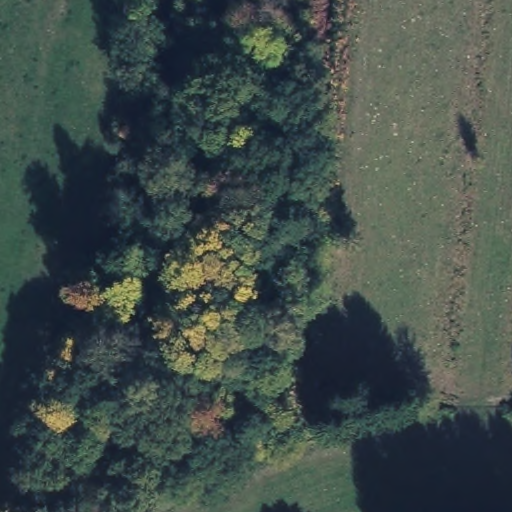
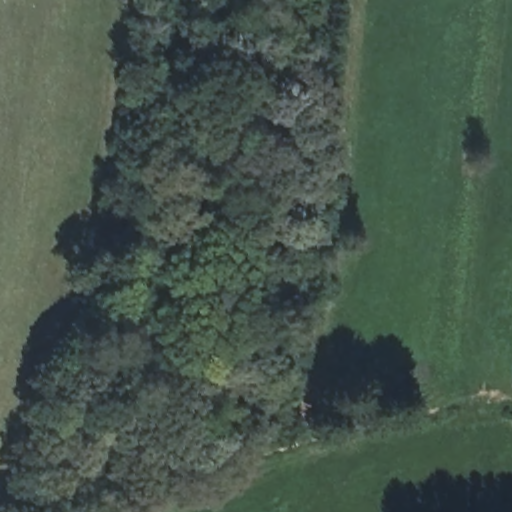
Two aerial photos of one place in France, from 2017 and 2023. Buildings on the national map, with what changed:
unchanged [(135,223),(129,248),(106,242),(114,217),(135,223)]
unchanged [(226,390),(223,406),(212,403),(216,388),(226,390)]

